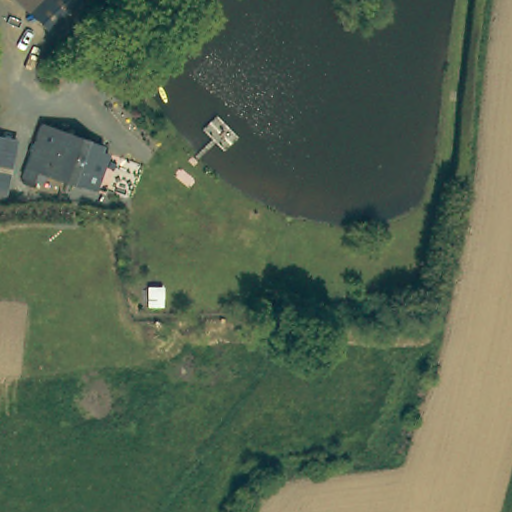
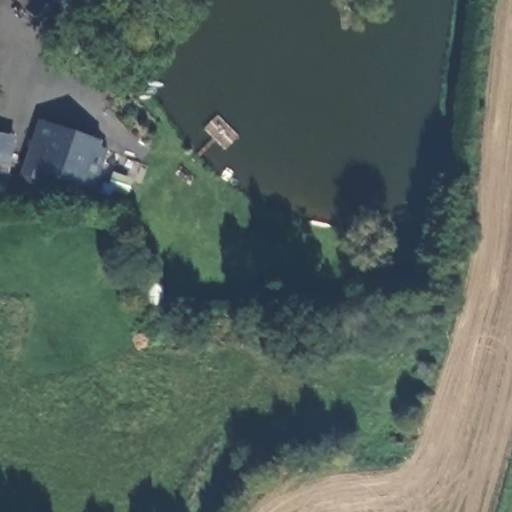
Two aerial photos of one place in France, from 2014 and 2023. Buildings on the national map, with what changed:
unchanged [(28,5),(22,0),(83,0),(77,7),(56,30),(28,5)]
unchanged [(98,195),(43,165),(37,174),(21,166),(41,134),(51,117),(67,127),(117,159),(98,195)]

